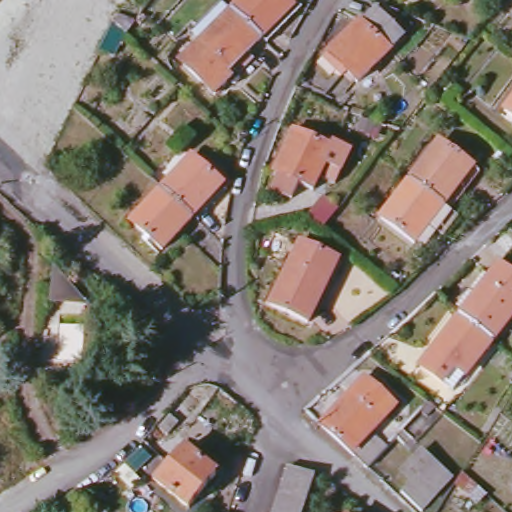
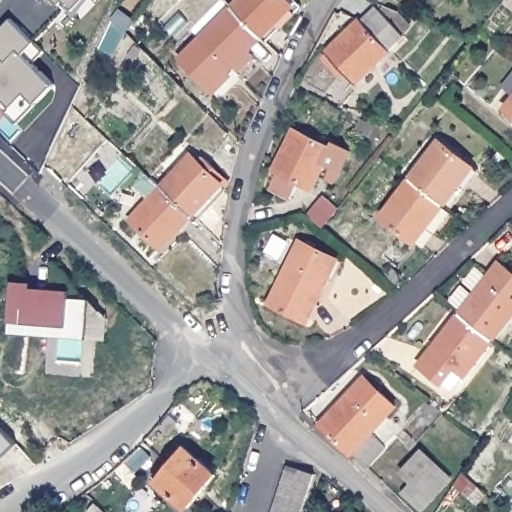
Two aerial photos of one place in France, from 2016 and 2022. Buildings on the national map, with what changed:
new [(59,3),(56,0),(63,0),(59,3)]
new [(63,0),(89,0),(73,19),(63,0)]
unchanged [(234,6),(240,0),(296,0),(298,2),(264,37),(234,6)]
unchanged [(249,52),(253,56),(238,72),(239,75),(239,79),(236,82),(232,82),(229,80),(216,92),(182,57),(234,6),(264,37),(249,52)]
unchanged [(361,21),(365,25),(380,11),(404,37),(356,82),(330,52),(361,21)]
unchanged [(113,21),(117,14),(134,21),(125,32),(113,21)]
new [(9,19),(43,52),(32,64),(54,85),(37,103),(27,96),(15,112),(0,101),(0,99),(4,92),(0,90),(0,29),(9,19)]
unchanged [(512,101),(512,116),(505,111),(512,101)]
unchanged [(301,132),(339,149),(319,189),(283,171),(301,132)]
unchanged [(412,180),(440,144),(474,169),(444,206),(412,180)]
unchanged [(163,188),(192,156),(223,185),(193,217),(163,188)]
unchanged [(414,243),(381,217),(412,180),(444,206),(414,243)]
unchanged [(163,188),(193,217),(162,249),(132,220),(163,188)]
unchanged [(296,252),(334,268),(312,312),(276,296),(296,252)]
unchanged [(512,269),(512,291),(511,292),(512,294),(512,312),(494,335),(461,309),(499,260),(512,269)]
demolished [(52,303),(54,271),(84,305),(52,303)]
new [(8,334),(9,321),(11,281),(30,282),(30,287),(69,291),(69,297),(89,300),(107,318),(106,341),(85,341),(87,338),(8,334)]
unchanged [(467,370),(456,362),(444,378),(421,361),(461,309),(494,335),(467,370)]
unchanged [(367,469),(321,426),(366,379),(397,407),(372,434),(388,447),(368,470),(367,469)]
unchanged [(153,478),(167,462),(181,445),(186,448),(216,475),(201,492),(188,507),(157,481),(153,478)]
unchanged [(454,478),(423,509),(401,492),(408,482),(400,476),(423,450),(454,478)]
unchanged [(314,475),(302,512),(272,512),(287,467),(314,475)]

